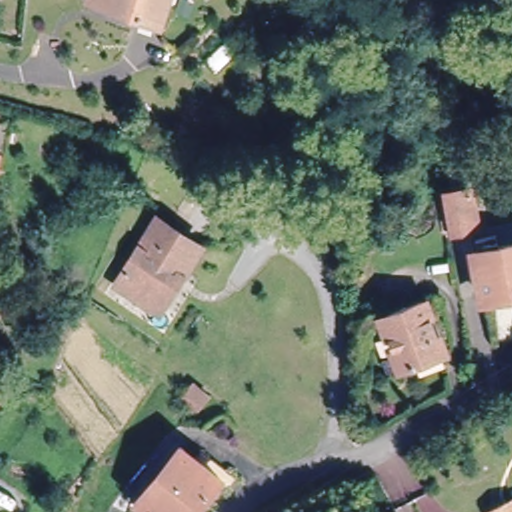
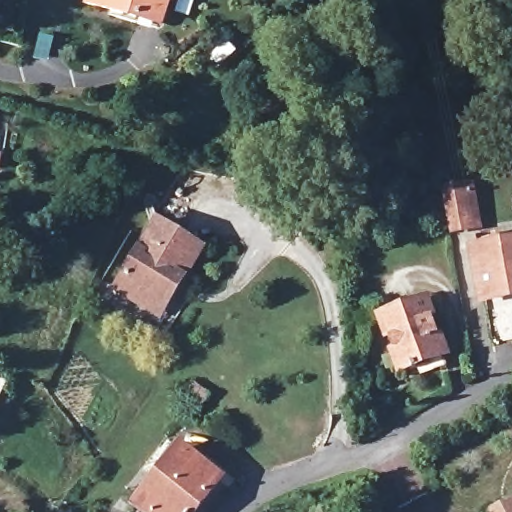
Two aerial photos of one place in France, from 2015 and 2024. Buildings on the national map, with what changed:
unchanged [(89,0),(168,0),(161,23),(135,15),(88,0),(89,0)]
unchanged [(3,142),(0,164),(0,142),(3,142)]
unchanged [(472,222),(450,226),(443,186),(465,182),(472,222)]
unchanged [(139,298),(117,285),(157,220),(196,244),(200,246),(182,275),(162,308),(160,312),(139,298)]
unchanged [(491,245),(512,241),(512,295),(485,300),(476,248),(491,245)]
unchanged [(399,369),(380,316),(425,298),(444,351),(399,369)]
unchanged [(194,382),(209,395),(199,407),(184,395),(194,382)]
unchanged [(137,501),(181,445),(221,476),(194,512),(150,512),(137,501)]
unchanged [(492,508),(512,498),(512,512),(494,512),(492,508)]

